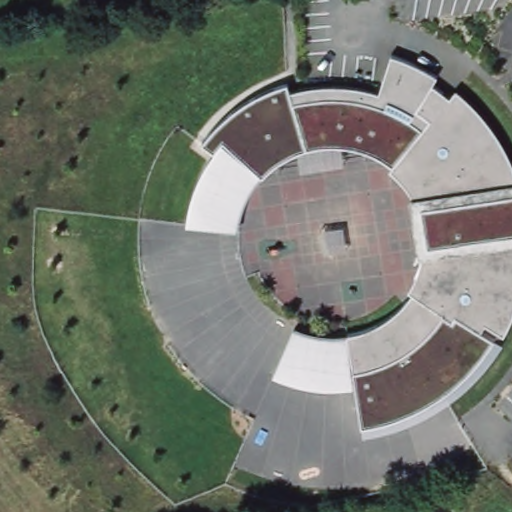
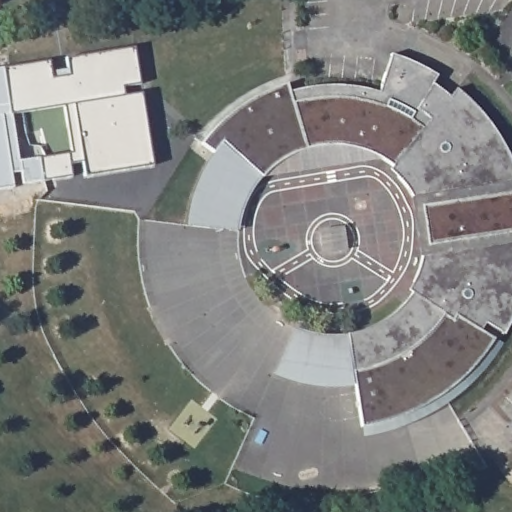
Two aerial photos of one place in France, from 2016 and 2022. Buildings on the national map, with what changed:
new [(66,57),(135,46),(141,84),(124,87),(125,95),(142,92),(154,165),(85,176),(82,162),(70,164),(72,176),(43,181),(40,157),(71,152),(64,106),(11,114),(4,67),(50,60),(66,57)]
unchanged [(187,217),(189,207),(192,195),(196,185),(202,175),(210,162),(217,150),(204,139),(214,129),(223,119),(235,110),(252,100),(267,92),(288,84),(293,92),(306,88),(317,86),(330,85),(343,85),(361,88),(381,93),(393,54),(398,55),(412,61),(427,68),(439,76),(435,84),(452,96),(458,89),(466,96),(478,109),(490,122),(500,136),(511,156),(512,158),(512,322),(506,333),(500,344),(494,356),(486,370),(473,382),(460,393),(449,402),(438,411),(423,420),(407,426),(393,431),(382,433),(375,435),(365,435),(358,387),(340,388),(326,389),(310,387),(292,383),(275,376),(294,330),(300,333),(316,336),(328,338),(345,337),(357,334),(371,330),(387,322),(404,309),(415,293),(420,283),(425,272),(429,258),(422,258),(412,198),(416,196),(410,181),(396,169),(380,156),(361,149),(342,146),(345,165),(301,169),(299,151),(286,156),(273,165),(263,177),(256,187),(248,199),(243,211),(240,220),(239,233),(188,225),(187,217)]

